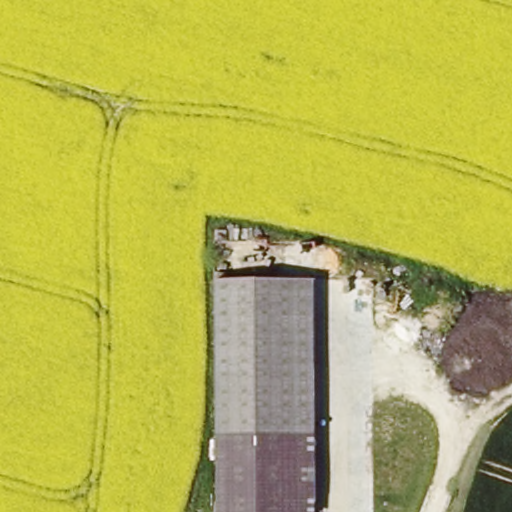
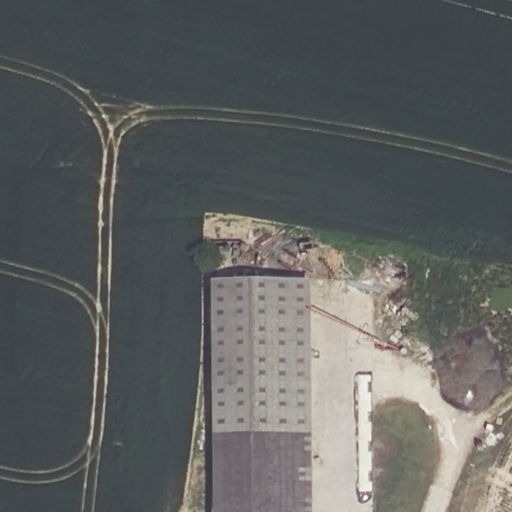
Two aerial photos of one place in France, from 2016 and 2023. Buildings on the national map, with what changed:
unchanged [(316,512),(214,512),(212,282),(310,281),(316,512)]

